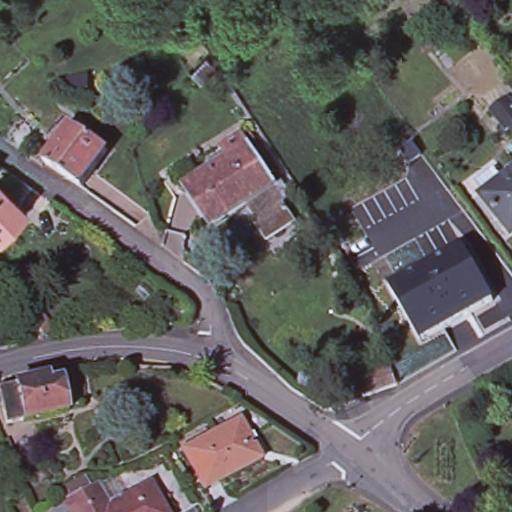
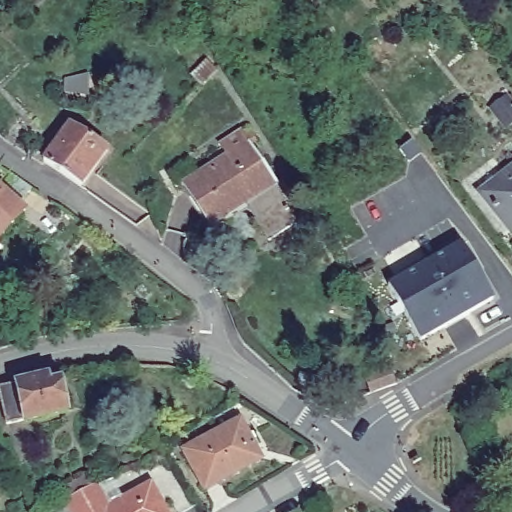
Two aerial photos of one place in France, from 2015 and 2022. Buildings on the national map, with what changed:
unchanged [(207,61),(216,71),(200,86),(190,76),(207,61)]
unchanged [(512,105),(512,122),(505,129),(490,110),(506,97),(512,105)]
unchanged [(69,124),(107,150),(80,187),(44,161),(69,124)]
unchanged [(259,224),(244,204),(230,214),(232,217),(215,229),(190,191),(215,174),(210,165),(227,153),(226,151),(227,150),(244,140),(245,142),(252,137),(257,146),(254,148),(281,187),(279,190),(290,206),(287,207),(297,222),(270,240),(267,242),(256,226),(259,224)]
unchanged [(512,170),(512,226),(508,230),(480,194),(512,170)]
unchanged [(0,237),(0,187),(25,211),(0,237)]
unchanged [(339,247),(334,251),(322,232),(327,229),(339,247)]
unchanged [(387,286),(461,242),(492,298),(420,340),(387,286)]
unchanged [(388,359),(395,385),(370,394),(365,374),(375,372),(374,364),(388,359)]
unchanged [(7,425),(0,395),(0,386),(57,375),(65,412),(7,425)]
unchanged [(241,420),(261,459),(204,490),(182,451),(241,420)]
unchanged [(60,500),(90,485),(90,487),(96,497),(93,500),(100,512),(40,512),(60,500)]
unchanged [(148,491),(159,512),(109,512),(148,491)]

